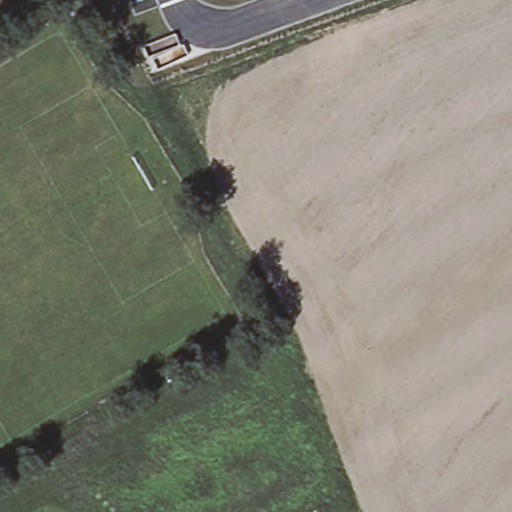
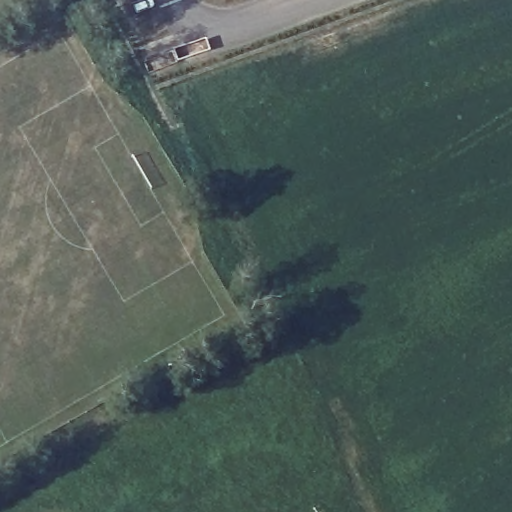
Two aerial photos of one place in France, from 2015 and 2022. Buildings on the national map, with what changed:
[]

